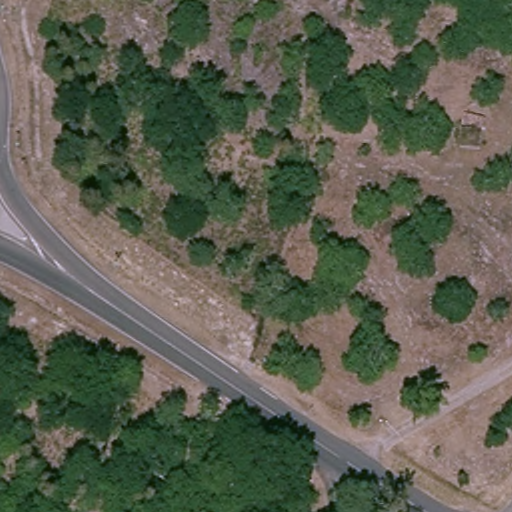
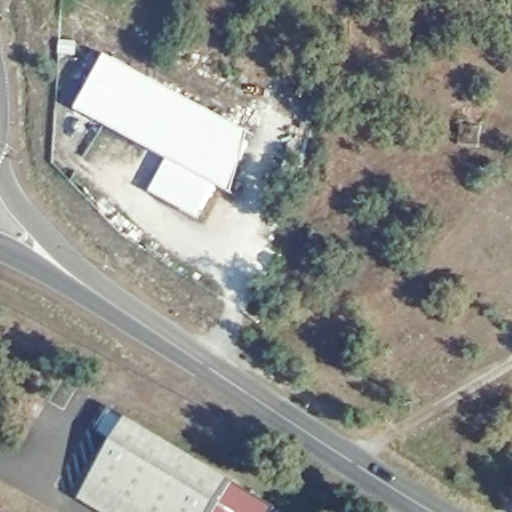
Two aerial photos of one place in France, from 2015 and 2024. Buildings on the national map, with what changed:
new [(213,182),(196,216),(151,191),(167,157),(78,109),(106,55),(251,132),(233,194),(213,182)]
new [(82,420),(97,395),(219,468),(192,512),(147,512),(76,469),(99,430),(82,420)]
new [(147,512),(108,512),(65,486),(76,469),(147,512)]
new [(263,496),(253,512),(194,512),(219,470),(263,496)]

